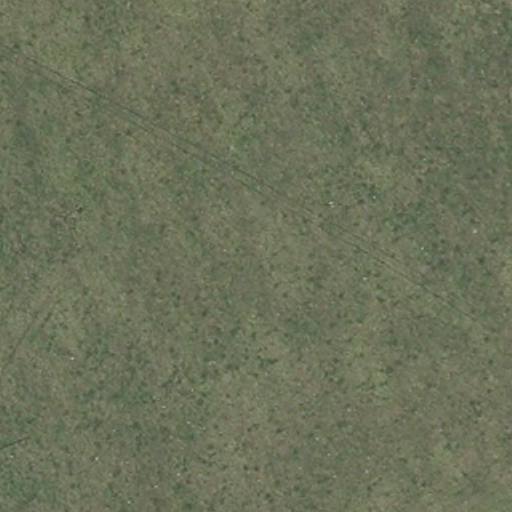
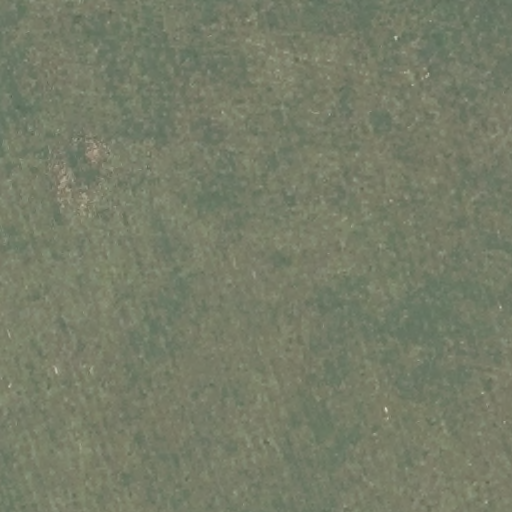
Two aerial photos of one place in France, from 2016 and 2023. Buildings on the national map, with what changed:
[]

